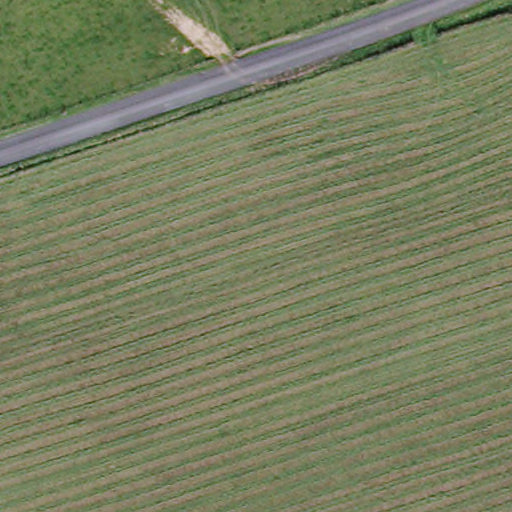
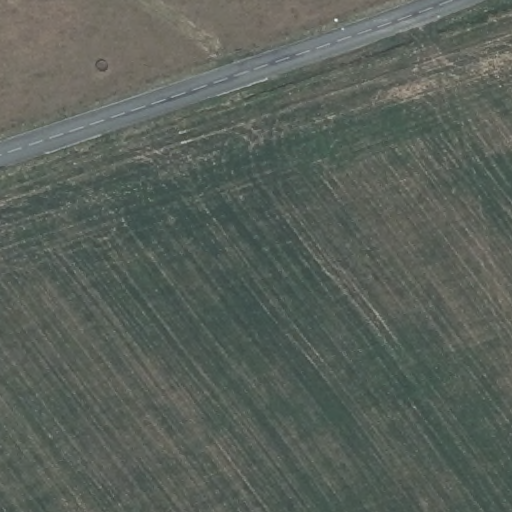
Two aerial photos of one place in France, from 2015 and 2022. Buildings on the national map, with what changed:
[]

